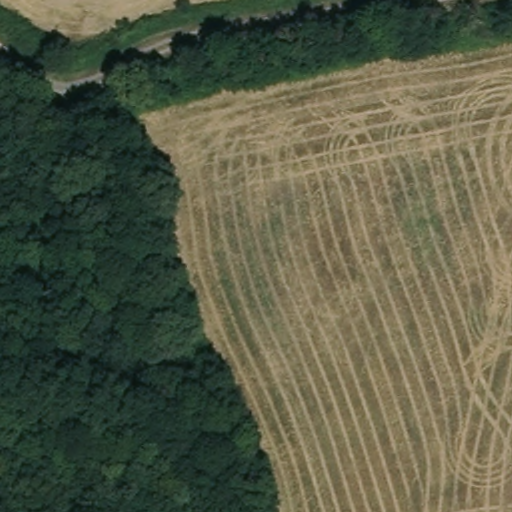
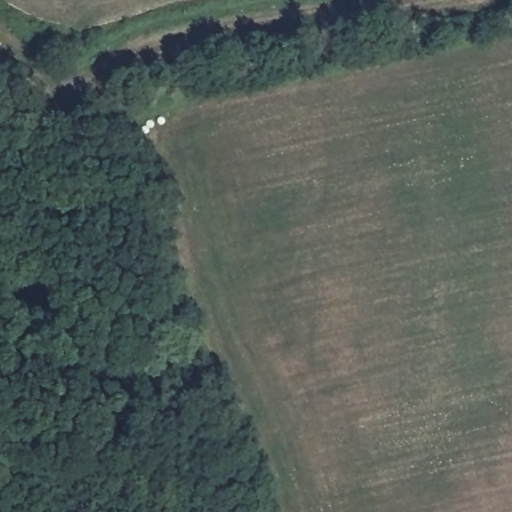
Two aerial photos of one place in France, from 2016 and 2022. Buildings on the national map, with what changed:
[]

